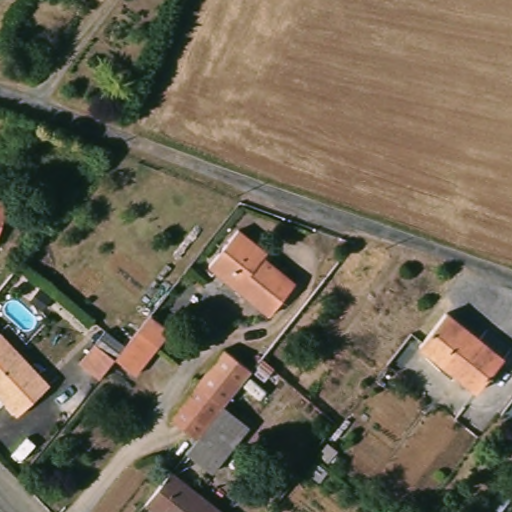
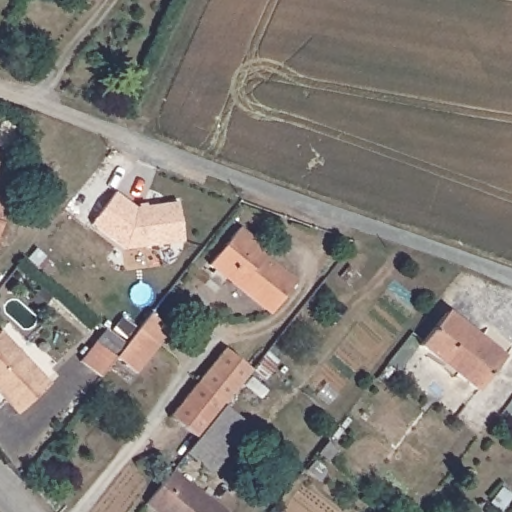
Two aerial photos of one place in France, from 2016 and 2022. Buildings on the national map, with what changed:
new [(124,250),(90,225),(116,192),(136,207),(178,201),(184,242),(124,250)]
unchanged [(1,246),(0,246),(0,199),(14,202),(1,246)]
unchanged [(308,278),(272,323),(212,273),(247,229),(308,278)]
unchanged [(478,399),(424,355),(452,318),(507,362),(478,399)]
unchanged [(174,337),(142,378),(122,362),(129,353),(155,321),(174,337)]
unchanged [(55,387),(26,417),(0,391),(0,334),(2,337),(4,334),(55,387)]
unchanged [(122,362),(106,382),(87,368),(104,347),(122,362)]
unchanged [(229,360),(254,380),(227,412),(201,446),(176,425),(229,360)]
unchanged [(227,412),(253,432),(217,479),(191,458),(201,446),(227,412)]
unchanged [(149,510),(176,476),(217,512),(152,512),(149,510)]

